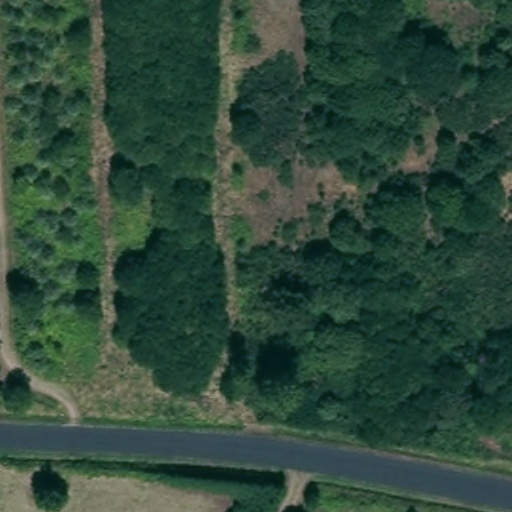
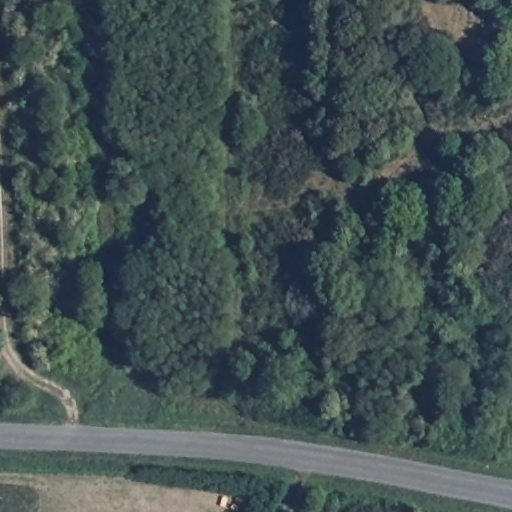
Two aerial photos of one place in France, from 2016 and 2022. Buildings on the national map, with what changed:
[]

